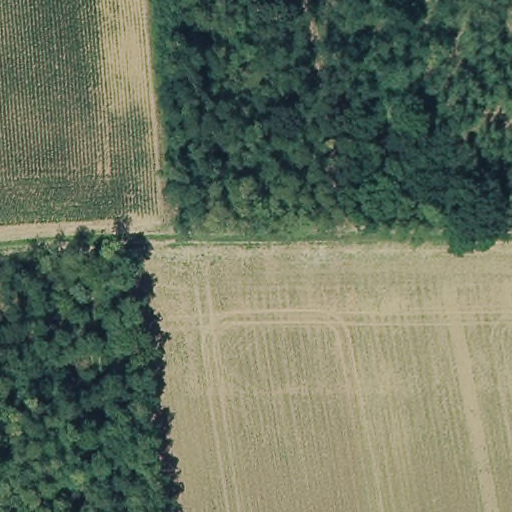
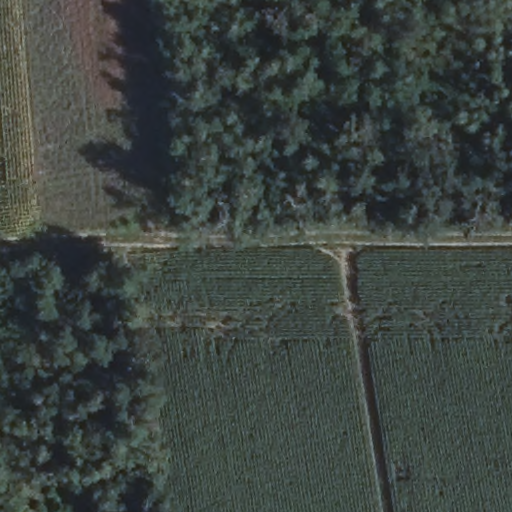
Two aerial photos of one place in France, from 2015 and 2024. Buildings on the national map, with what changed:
unchanged [(40,386),(45,396),(25,407),(20,396),(40,386)]

